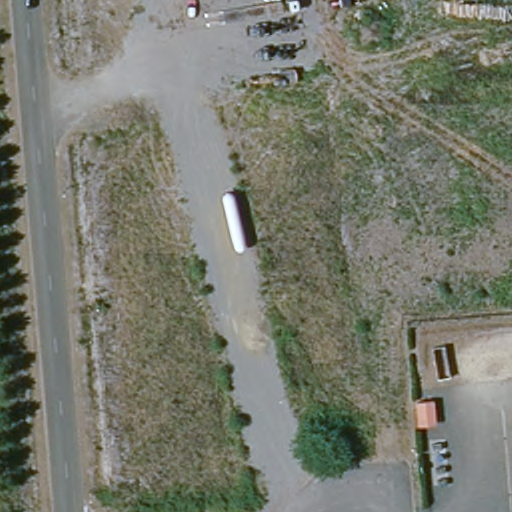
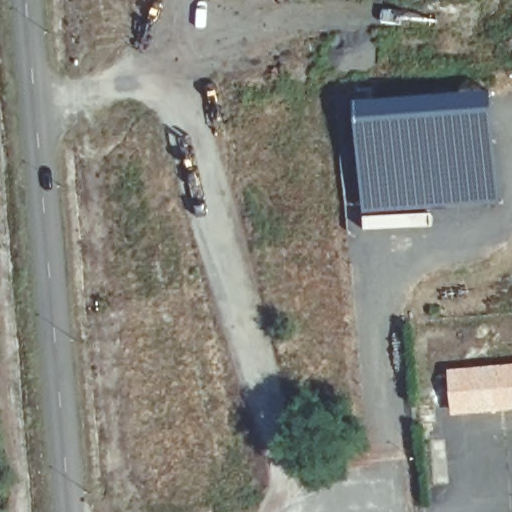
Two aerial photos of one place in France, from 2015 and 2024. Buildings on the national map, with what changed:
new [(363,215),(357,105),(493,95),(500,204),(363,215)]
new [(512,363),(512,410),(450,416),(447,370),(512,363)]

